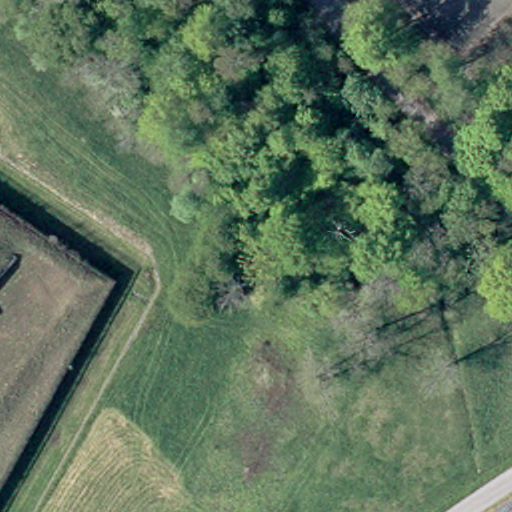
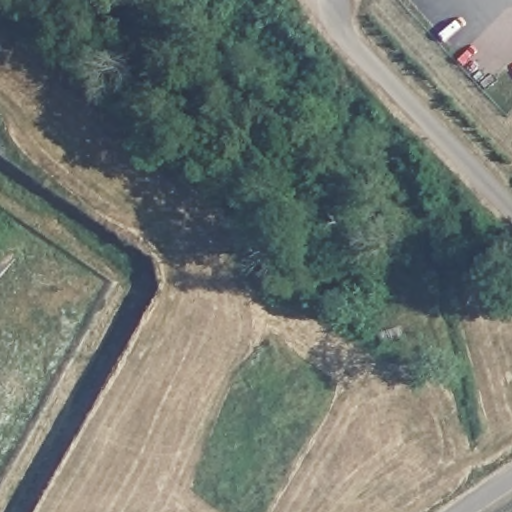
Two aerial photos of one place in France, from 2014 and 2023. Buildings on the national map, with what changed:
[]

